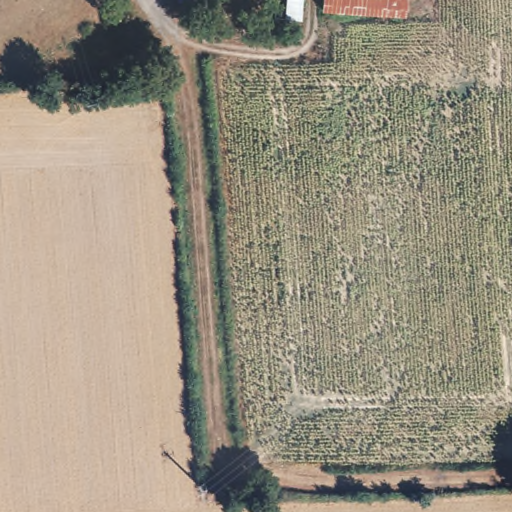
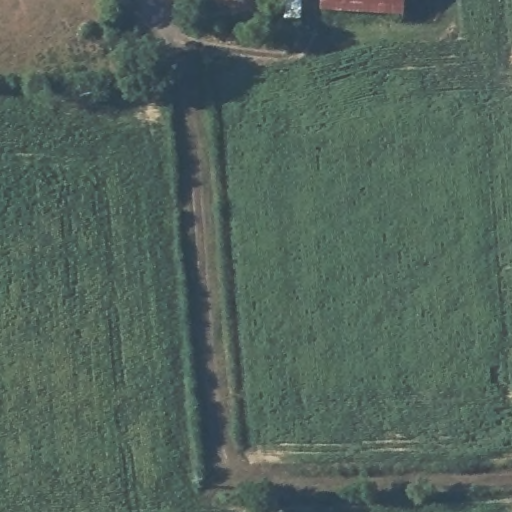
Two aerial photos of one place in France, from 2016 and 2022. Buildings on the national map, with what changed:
unchanged [(300,0),(299,10),(280,7),(281,0),(300,0)]
unchanged [(316,11),(317,0),(404,0),(401,17),(316,11)]

